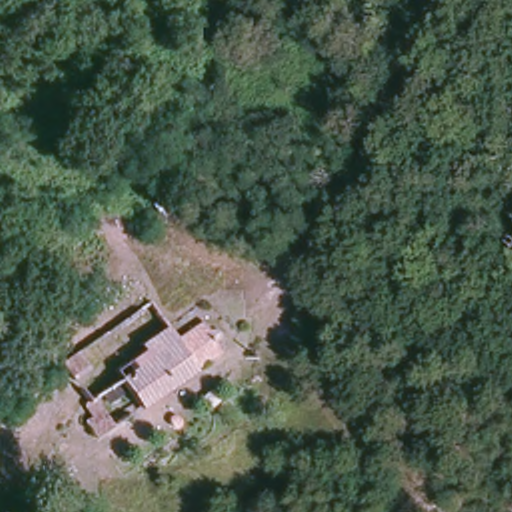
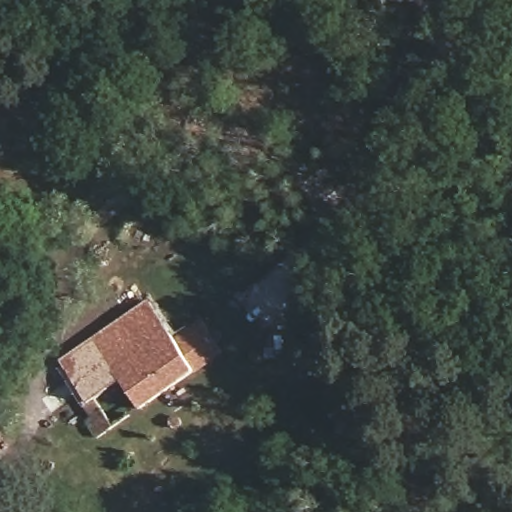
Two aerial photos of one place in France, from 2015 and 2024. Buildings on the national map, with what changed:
new [(145,333),(154,355),(122,379),(95,398),(113,427),(96,439),(85,420),(88,418),(82,405),(87,402),(58,360),(149,300),(163,322),(145,333)]
unchanged [(201,320),(218,351),(196,369),(177,341),(201,320)]
unchanged [(122,379),(154,355),(145,333),(165,321),(177,341),(196,369),(197,371),(200,375),(143,410),(122,379)]

